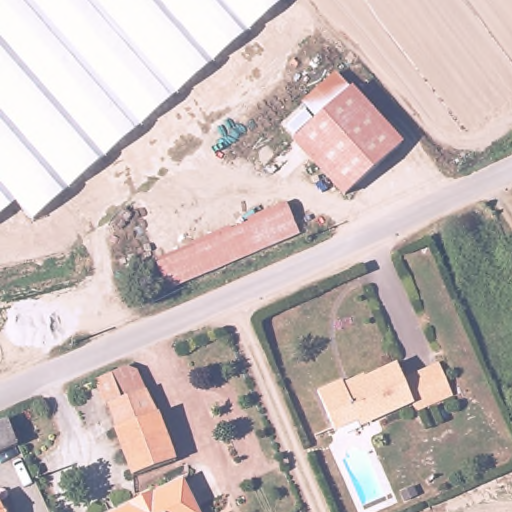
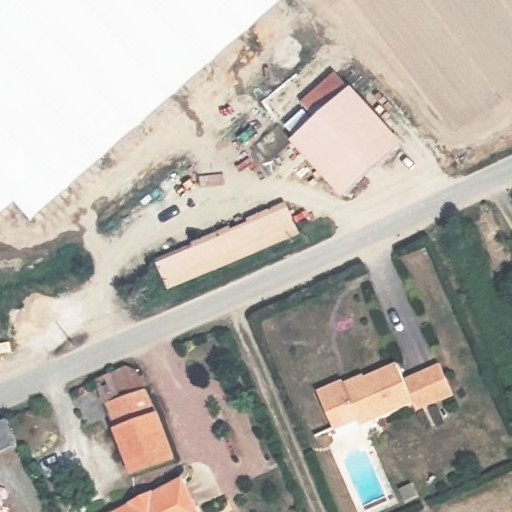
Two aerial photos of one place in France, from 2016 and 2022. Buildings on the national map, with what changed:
unchanged [(17,204),(0,217),(0,0),(285,0),(35,222),(17,204)]
unchanged [(301,136),(310,128),(323,116),(310,100),(343,69),(408,139),(361,183),(351,191),(301,136)]
unchanged [(292,199),(303,227),(173,283),(162,257),(292,199)]
unchanged [(354,385),(361,382),(360,376),(405,357),(411,372),(445,357),(458,388),(423,403),(420,396),(368,420),(366,416),(345,426),(327,387),(350,376),(354,385)]
unchanged [(140,470),(101,377),(117,370),(135,362),(144,365),(154,386),(183,452),(140,470)]
unchanged [(0,423),(10,419),(22,450),(18,451),(0,457),(0,423)]
unchanged [(185,475),(205,512),(115,512),(114,510),(185,475)]
unchanged [(114,510),(115,512),(110,512),(114,510)]

